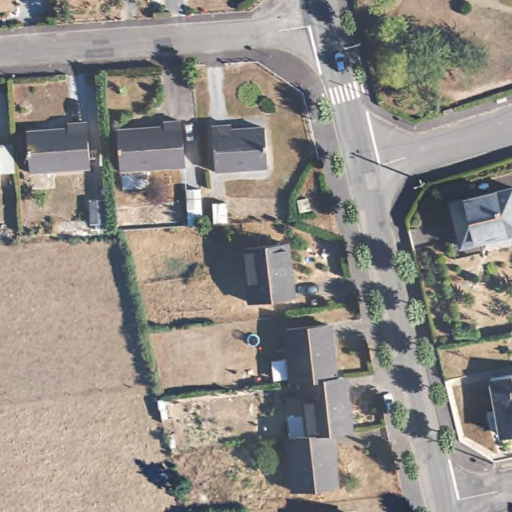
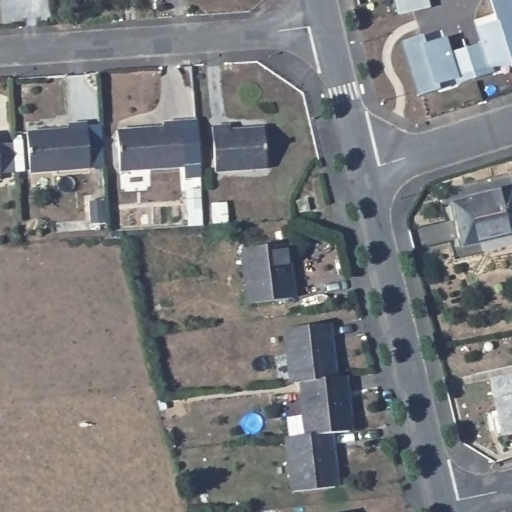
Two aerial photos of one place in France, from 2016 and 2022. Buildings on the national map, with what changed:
new [(399,15),(395,0),(428,0),(430,6),(399,15)]
new [(401,42),(421,36),(424,45),(446,38),(451,52),(478,44),(474,30),(494,23),(488,0),(512,0),(512,68),(492,67),(494,74),(457,85),(456,81),(439,85),(440,89),(418,95),(401,42)]
unchanged [(163,132),(163,127),(181,126),(184,171),(119,175),(116,135),(163,132)]
unchanged [(69,133),(69,129),(86,127),(90,172),(30,178),(26,136),(69,133)]
unchanged [(263,132),(266,173),(214,176),(212,131),(230,130),(231,135),(263,132)]
unchanged [(12,148),(13,162),(14,176),(0,177),(0,149),(12,148)]
unchanged [(512,236),(484,242),(484,248),(462,253),(451,206),(512,193),(512,236)]
unchanged [(285,249),(292,304),(251,308),(245,254),(285,249)]
unchanged [(332,330),(338,384),(307,387),(297,388),(291,333),(332,330)]
unchanged [(512,440),(502,442),(490,383),(512,380),(512,440)]
unchanged [(338,384),(348,383),(354,436),(334,438),(313,440),(307,387),(338,384)]
unchanged [(334,438),(340,492),(299,496),(293,442),(313,440),(334,438)]

